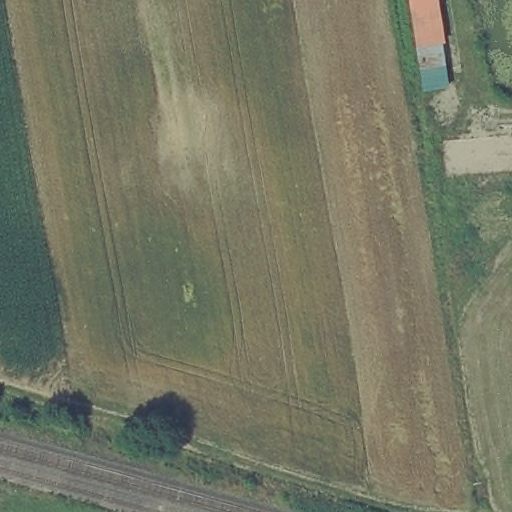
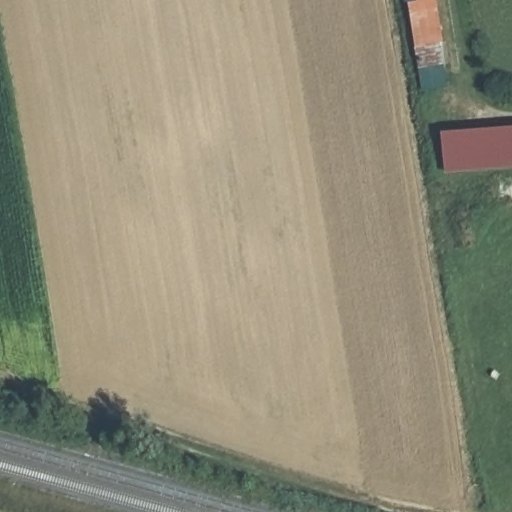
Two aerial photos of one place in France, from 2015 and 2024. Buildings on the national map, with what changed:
unchanged [(445,74),(415,78),(405,7),(434,0),(437,0),(445,74)]
new [(446,172),(443,133),(512,128),(512,167),(446,172)]
demolished [(437,186),(432,139),(512,133),(512,180),(437,186)]

